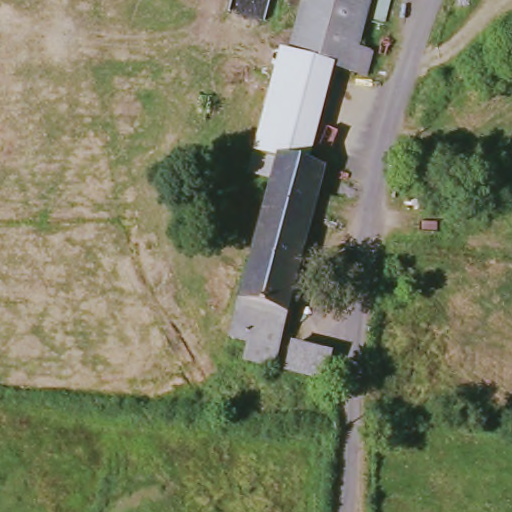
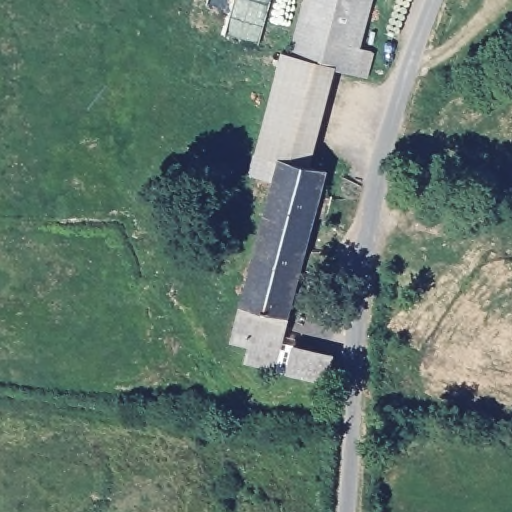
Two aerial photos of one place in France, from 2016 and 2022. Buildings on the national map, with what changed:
unchanged [(357,49),(373,53),(367,76),(341,68),(292,55),(306,0),(370,0),(357,49)]
unchanged [(251,171),(282,52),(292,55),(341,68),(317,163),(280,154),(275,177),(251,171)]
unchanged [(280,154),(297,157),(317,163),(334,168),(275,363),(245,356),(250,340),(232,335),(275,177),(280,154)]
unchanged [(332,355),(327,381),(288,372),(294,346),(332,355)]

